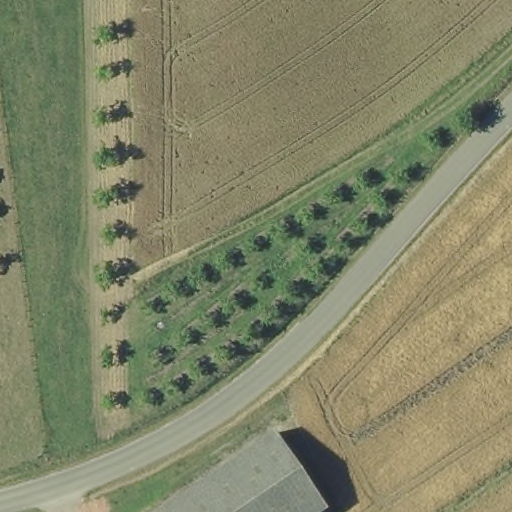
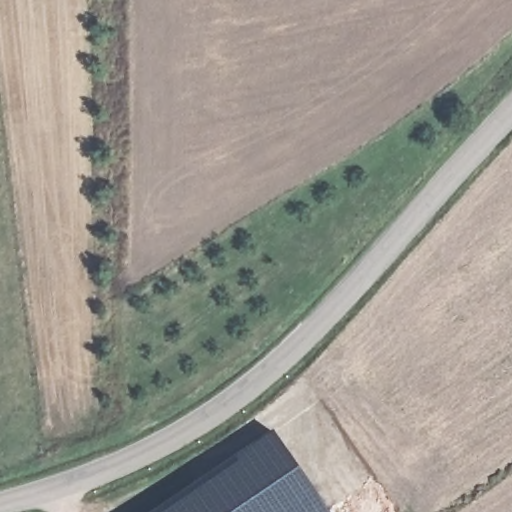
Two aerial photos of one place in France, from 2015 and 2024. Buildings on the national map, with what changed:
unchanged [(159,512),(276,435),(327,511),(325,512),(159,512)]

